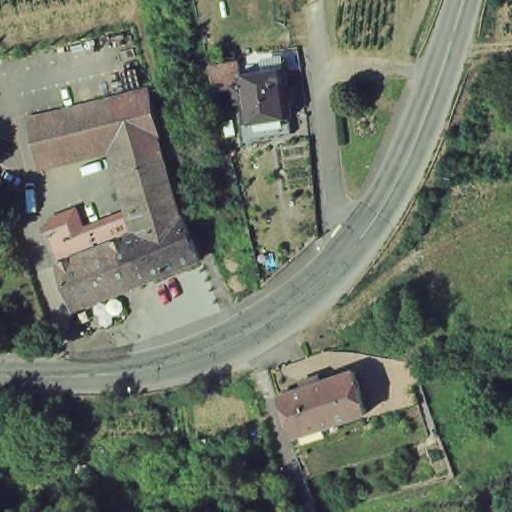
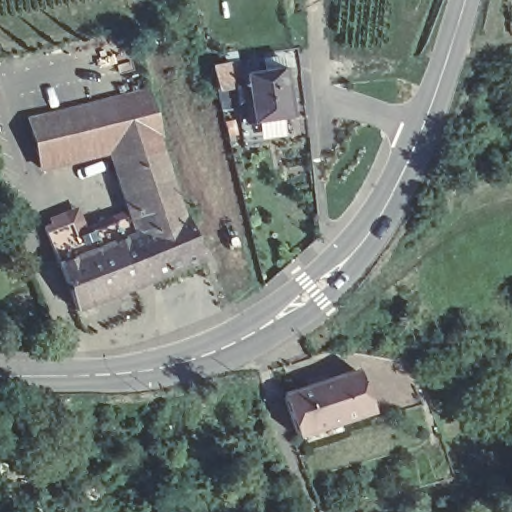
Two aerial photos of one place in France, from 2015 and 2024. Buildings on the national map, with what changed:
unchanged [(214,88),(209,66),(235,62),(237,74),(281,68),(287,115),(285,115),(245,121),(241,101),(235,102),(232,85),(214,88)]
unchanged [(106,160),(29,175),(18,126),(141,101),(151,151),(149,151),(106,160)]
unchanged [(241,101),(245,121),(285,115),(288,133),(251,139),(251,144),(240,146),(235,102),(241,101)]
unchanged [(73,239),(75,242),(87,238),(107,231),(125,225),(132,223),(106,160),(149,151),(163,198),(172,227),(176,226),(193,271),(91,310),(65,319),(51,273),(43,249),(73,239)]
unchanged [(363,417),(290,442),(277,401),(277,400),(308,390),(305,381),(340,370),(343,378),(350,376),(363,417)]

